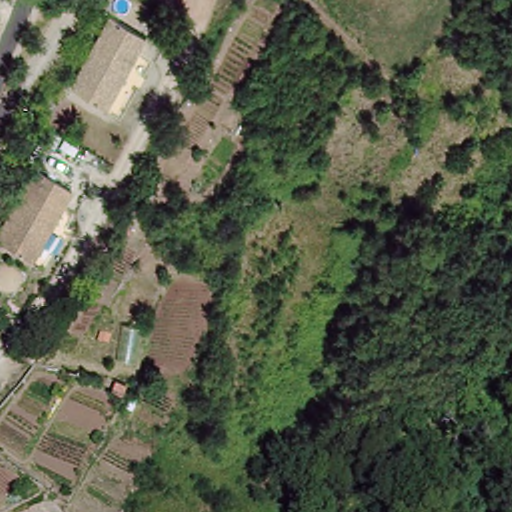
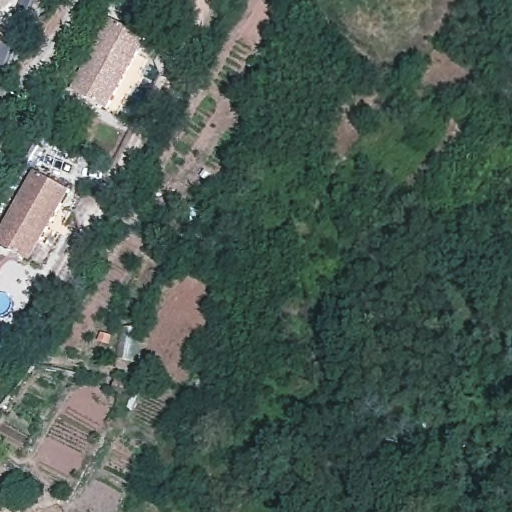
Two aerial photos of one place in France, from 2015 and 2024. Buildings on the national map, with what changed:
unchanged [(74,94),(111,20),(148,42),(114,113),(74,94)]
unchanged [(34,185),(71,201),(34,270),(0,252),(0,251),(34,185)]
unchanged [(365,493),(368,467),(393,472),(387,496),(365,493)]

